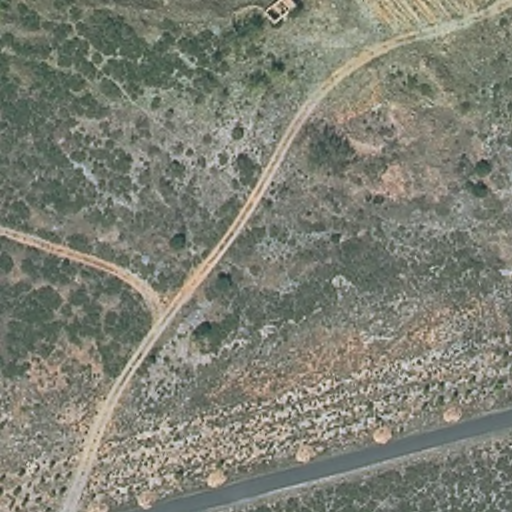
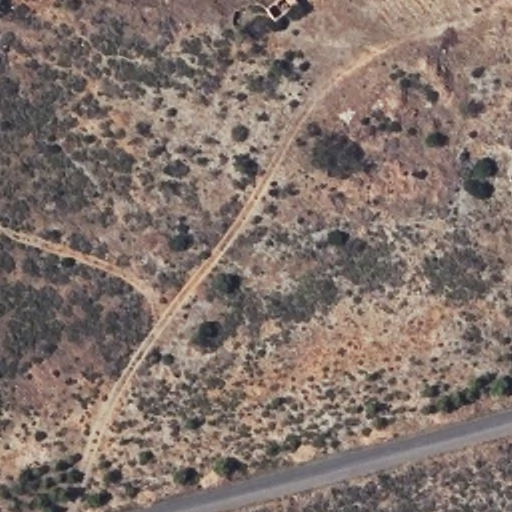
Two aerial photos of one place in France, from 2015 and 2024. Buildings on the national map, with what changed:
unchanged [(266,9),(277,0),(297,0),(300,4),(278,22),(266,9)]

